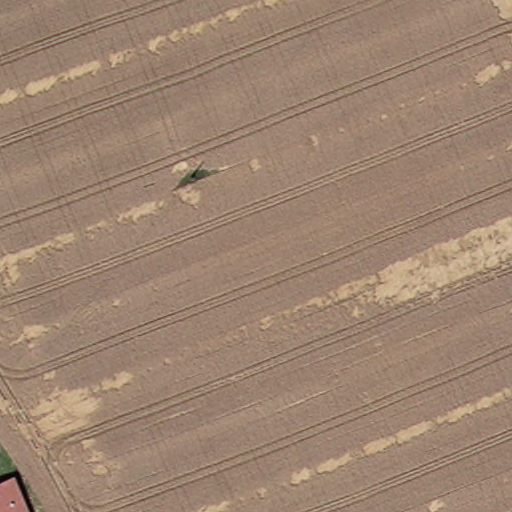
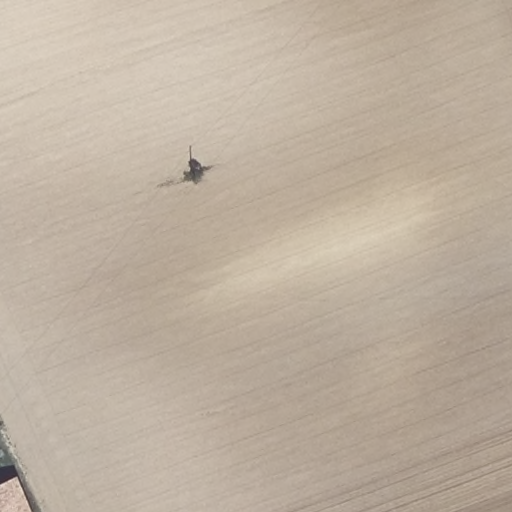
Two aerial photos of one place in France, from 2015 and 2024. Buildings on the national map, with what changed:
unchanged [(21,480),(33,512),(0,512),(0,488),(21,480)]

